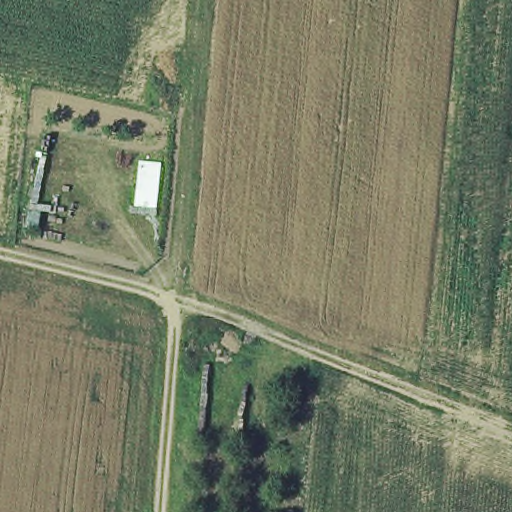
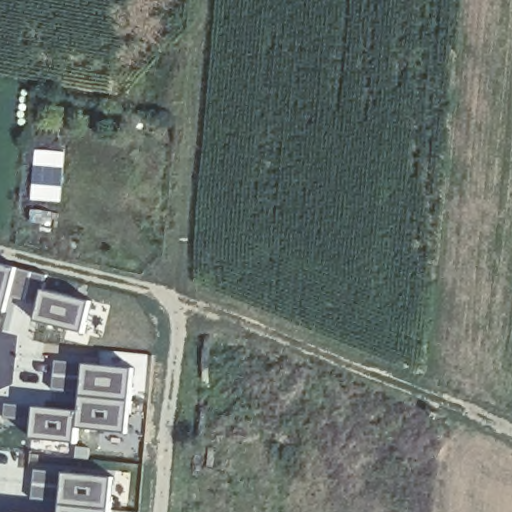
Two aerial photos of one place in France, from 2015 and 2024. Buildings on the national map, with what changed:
new [(19,267),(7,313),(0,312),(0,264),(19,267)]
new [(92,300),(85,330),(36,317),(43,288),(92,300)]
new [(54,359),(72,361),(69,390),(50,389),(54,359)]
new [(134,369),(128,432),(81,426),(78,442),(30,437),(33,407),(81,410),(85,365),(134,369)]
new [(113,474),(110,512),(61,512),(65,469),(113,474)]
new [(13,512),(13,511),(19,512),(13,512)]

